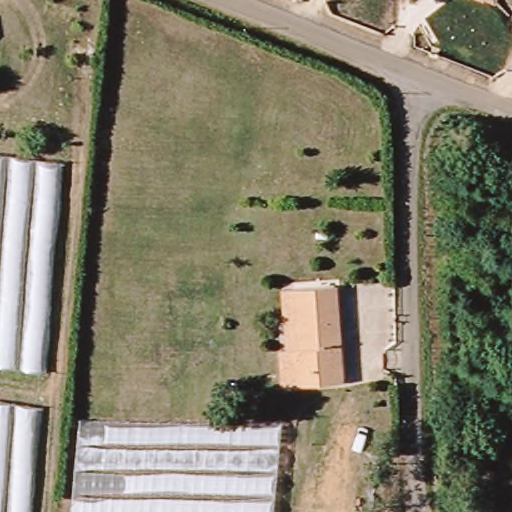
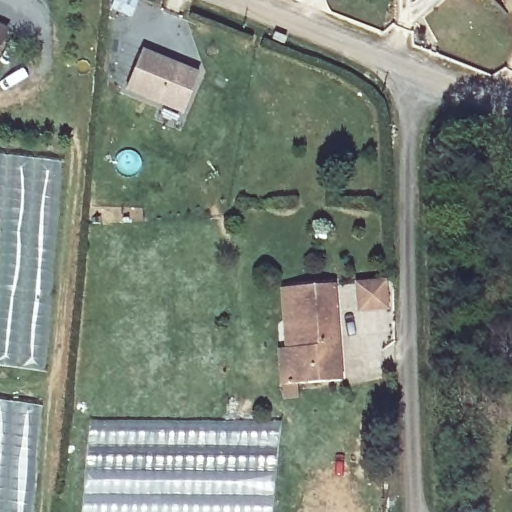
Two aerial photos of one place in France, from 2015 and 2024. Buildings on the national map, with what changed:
new [(7,32),(0,46),(0,29),(7,32)]
new [(142,49),(198,73),(181,114),(125,92),(142,49)]
unchanged [(60,166),(46,374),(0,368),(0,158),(60,166)]
unchanged [(293,381),(292,345),(283,345),(282,287),(293,287),(333,286),(335,318),(335,344),(336,379),(293,381)]
unchanged [(42,408),(32,512),(0,512),(0,402),(42,408)]
unchanged [(75,422),(276,419),(271,512),(66,512),(75,422)]

